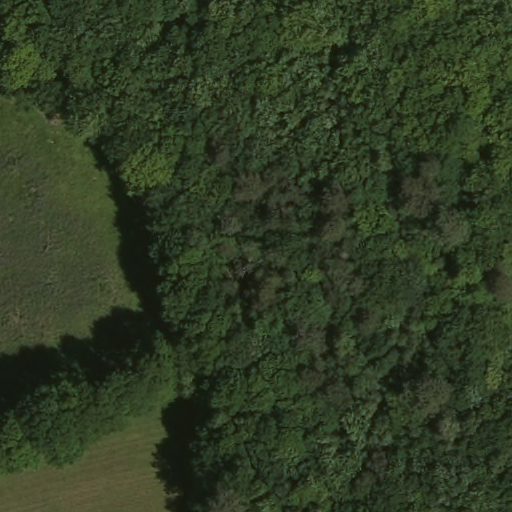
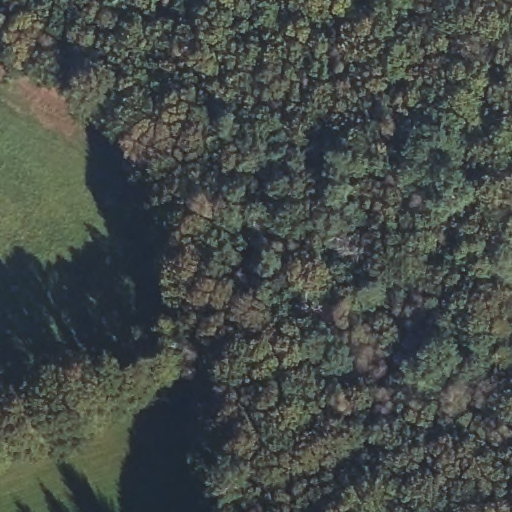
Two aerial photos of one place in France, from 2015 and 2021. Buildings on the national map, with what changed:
[]

